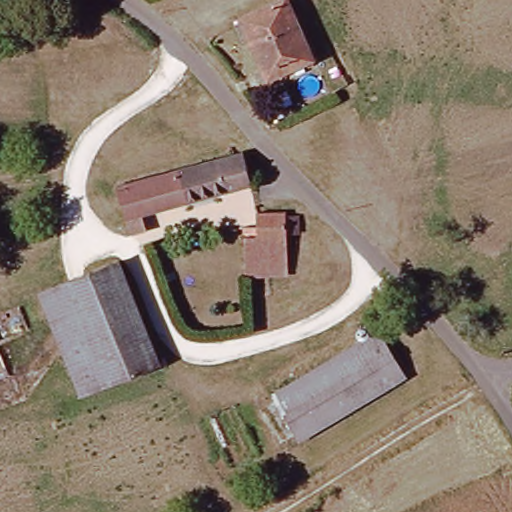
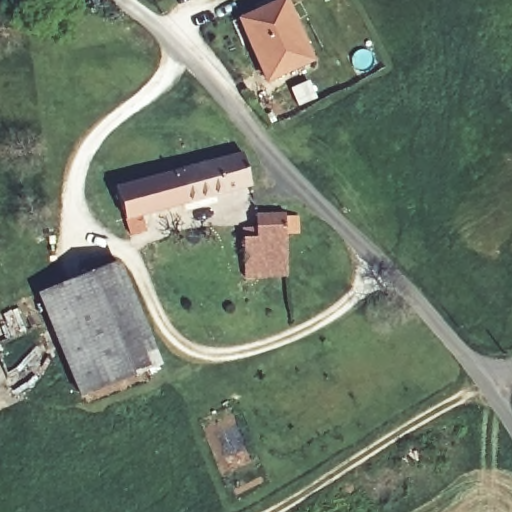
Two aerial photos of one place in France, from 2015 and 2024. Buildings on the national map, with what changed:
unchanged [(318,60),(274,80),(246,20),(289,0),(318,60)]
unchanged [(186,167),(242,151),(251,180),(141,215),(146,232),(129,235),(114,187),(186,167)]
unchanged [(256,226),(256,212),(284,211),(283,213),(290,215),(294,220),(296,224),(296,229),(294,233),(289,237),(286,239),(287,274),(248,276),(246,226),(256,226)]
unchanged [(79,393),(43,293),(122,262),(161,362),(79,393)]
demolished [(380,331),(407,375),(301,437),(274,392),(380,331)]
demolished [(10,377),(0,381),(0,351),(10,377)]

